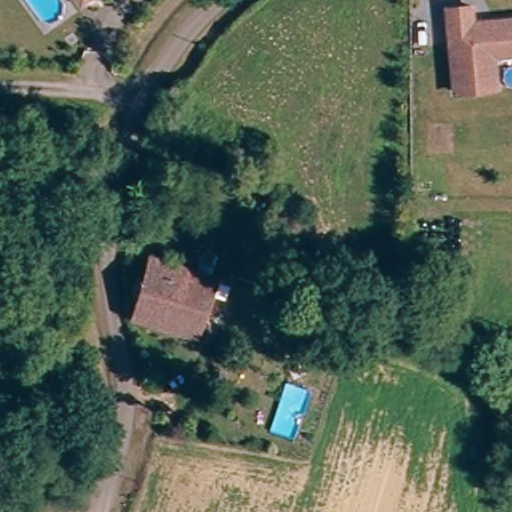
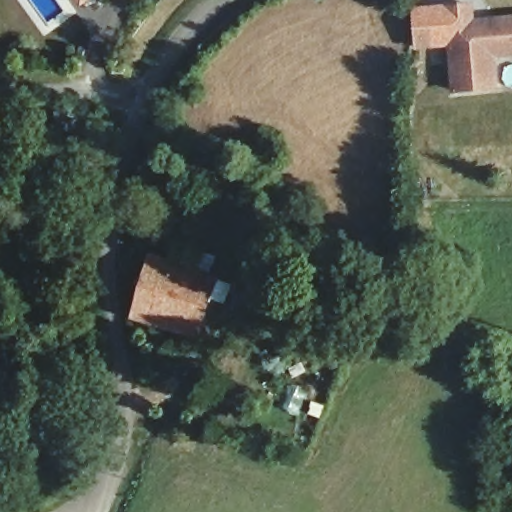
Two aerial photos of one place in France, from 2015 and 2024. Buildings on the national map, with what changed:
unchanged [(475,5),(477,29),(497,26),(496,20),(512,19),(512,54),(497,55),(499,88),(458,91),(451,7),(475,5)]
new [(458,91),(451,93),(448,49),(416,50),(411,8),(451,7),(458,91)]
unchanged [(201,336),(134,314),(154,254),(173,260),(200,268),(221,275),(201,336)]

